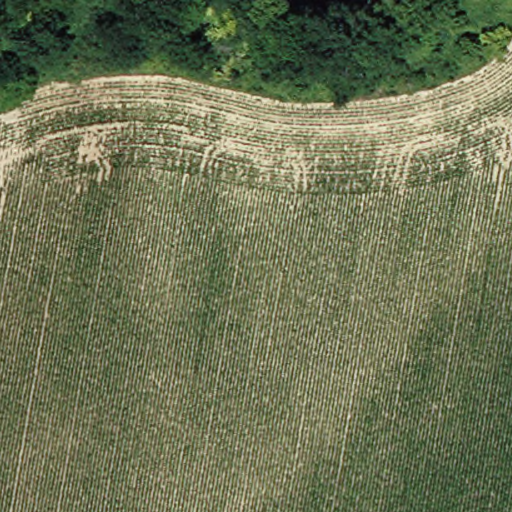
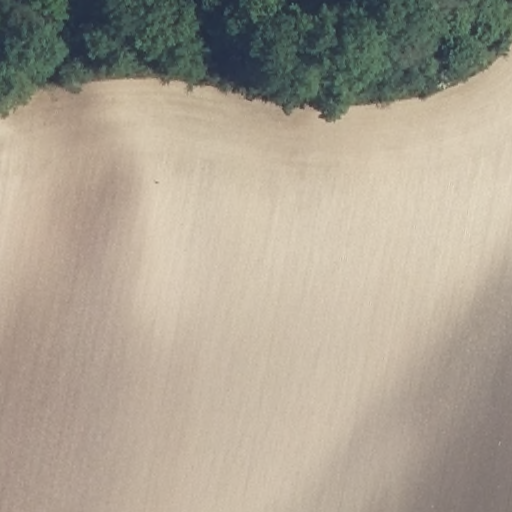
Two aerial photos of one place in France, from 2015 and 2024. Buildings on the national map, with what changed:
unchanged [(415,8),(385,7),(386,0),(435,0),(434,8),(415,8)]

